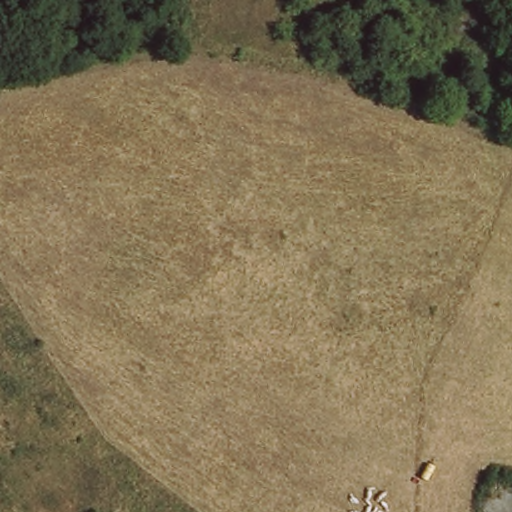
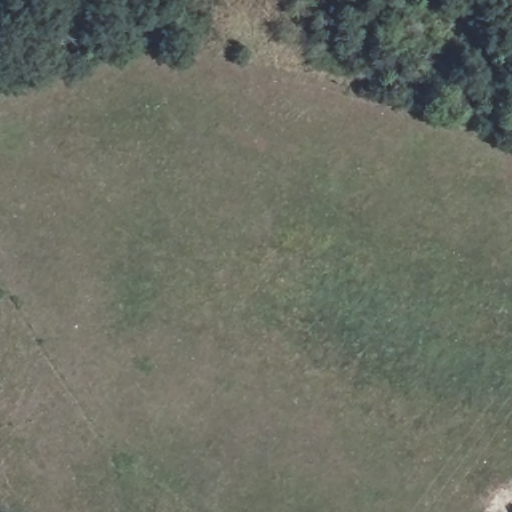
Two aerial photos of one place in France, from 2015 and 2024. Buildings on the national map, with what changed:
[]

